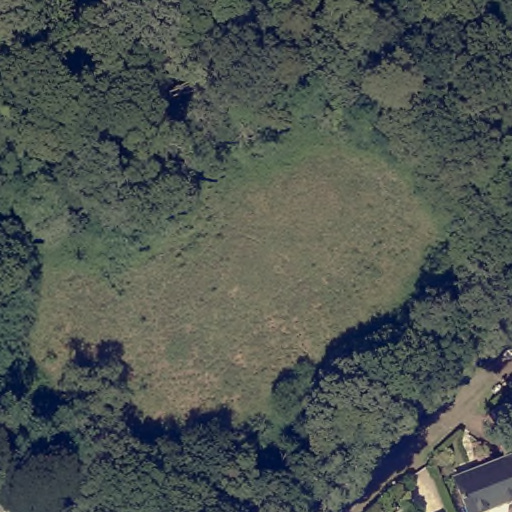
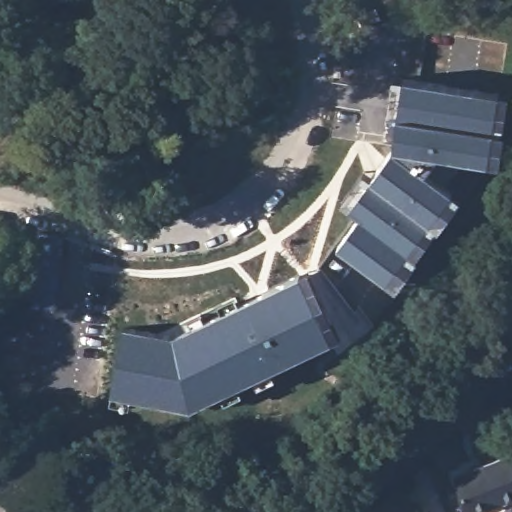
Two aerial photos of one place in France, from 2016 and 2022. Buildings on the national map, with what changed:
new [(358,216),(347,208),(369,177),(392,147),(396,115),(401,77),(447,84),(448,73),(468,75),(466,86),(500,91),(495,129),(490,162),(459,157),(444,181),(455,189),(385,282),(335,247),(358,216)]
new [(171,330),(297,272),(336,347),(193,416),(101,401),(116,322),(171,330)]
unchanged [(512,428),(512,431),(499,436),(491,415),(505,410),(512,428)]
unchanged [(512,460),(512,499),(474,512),(469,512),(456,476),(510,456),(512,460)]

